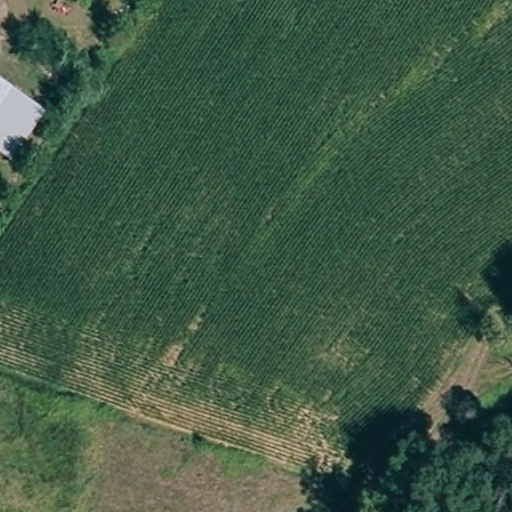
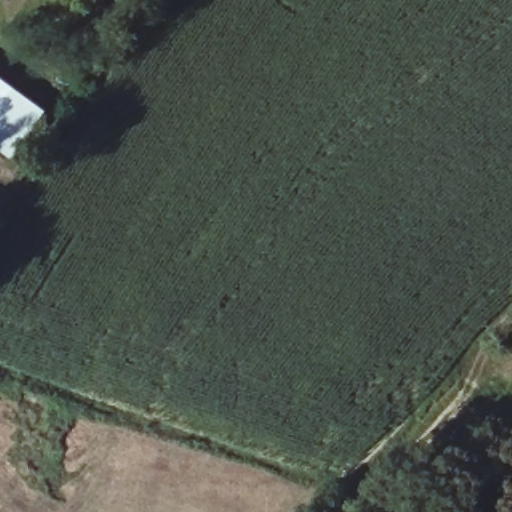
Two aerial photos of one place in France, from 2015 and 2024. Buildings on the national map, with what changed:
unchanged [(56,112),(25,163),(0,146),(0,73),(56,112)]

